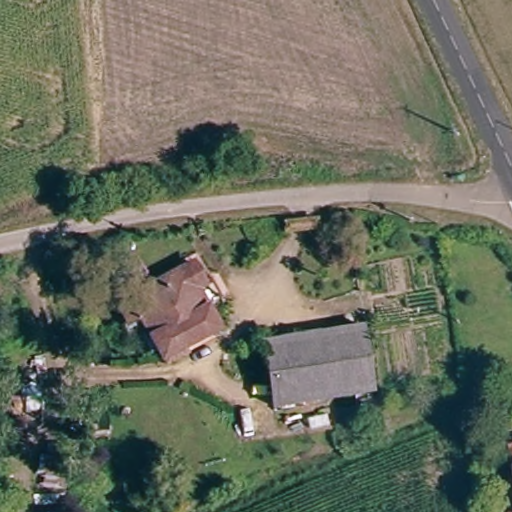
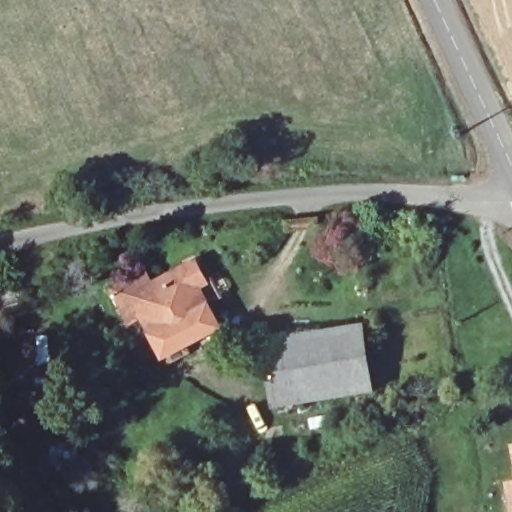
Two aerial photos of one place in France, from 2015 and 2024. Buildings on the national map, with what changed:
unchanged [(158,361),(144,333),(139,323),(122,325),(106,285),(126,277),(127,288),(193,257),(207,282),(199,288),(204,304),(211,302),(222,330),(158,361)]
unchanged [(356,325),(368,389),(273,407),(262,343),(356,325)]
unchanged [(504,479),(512,478),(512,509),(510,509),(504,479)]

